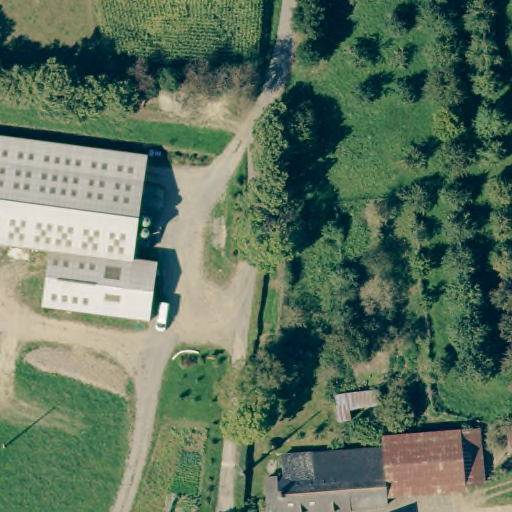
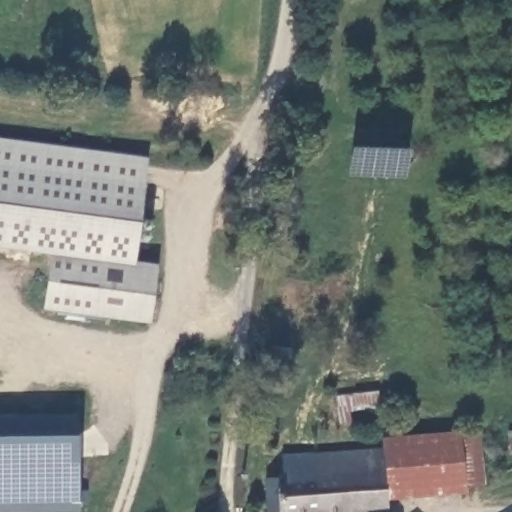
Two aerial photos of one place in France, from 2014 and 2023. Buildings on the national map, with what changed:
unchanged [(41,311),(49,255),(0,248),(0,138),(148,158),(133,263),(157,266),(150,324),(41,311)]
unchanged [(508,414),(512,414),(512,431),(509,431),(508,414)]
new [(78,512),(0,512),(0,417),(76,416),(77,436),(78,512)]
unchanged [(485,482),(388,492),(383,452),(382,443),(481,433),(485,482)]
unchanged [(390,510),(373,512),(272,512),(269,488),(286,486),(284,464),(383,452),(388,492),(390,510)]

